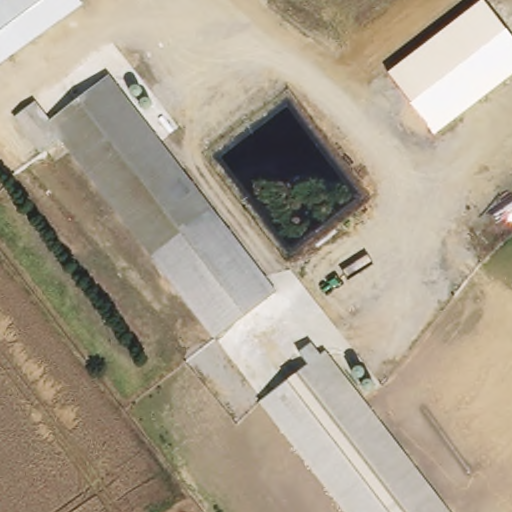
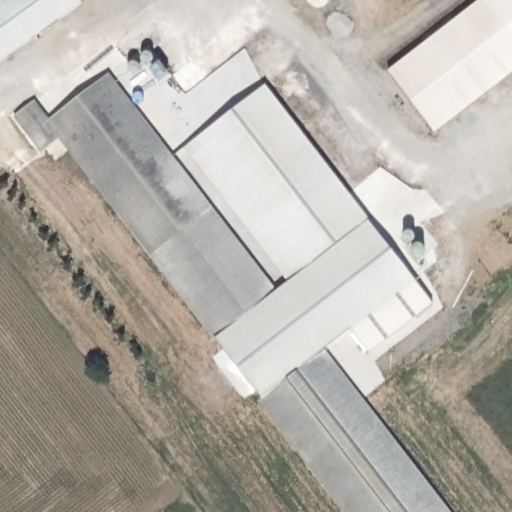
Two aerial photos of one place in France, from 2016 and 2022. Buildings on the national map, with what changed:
unchanged [(1,0),(78,0),(83,7),(0,65),(0,1),(1,0)]
unchanged [(385,72),(481,0),(484,0),(512,36),(512,74),(434,135),(385,72)]
new [(512,36),(484,0),(512,0),(512,36)]
unchanged [(106,77),(107,77),(211,209),(150,258),(70,152),(48,167),(14,121),(36,103),(48,118),(106,77)]
new [(287,282),(185,149),(267,87),(415,278),(327,351),(322,355),(312,342),(299,352),(310,365),(263,400),(215,337),(275,292),(287,282)]
unchanged [(211,209),(275,292),(213,338),(150,258),(211,209)]
unchanged [(299,352),(312,342),(322,355),(327,351),(450,512),(345,512),(261,402),(310,365),(299,352)]

